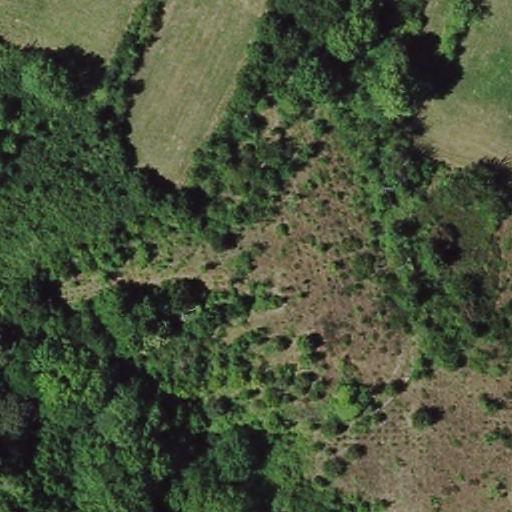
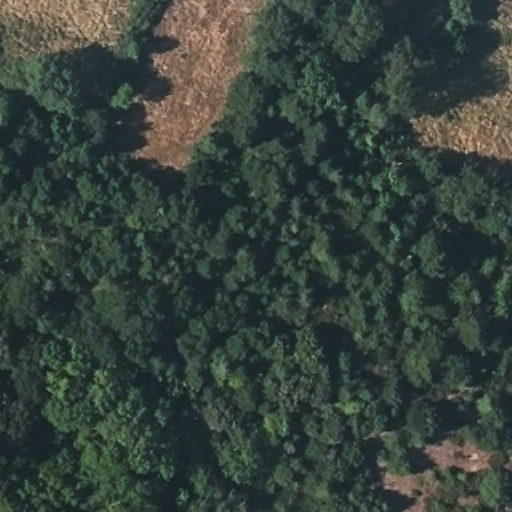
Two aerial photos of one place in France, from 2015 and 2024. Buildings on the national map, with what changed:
unchanged [(205,300),(187,313),(175,291),(192,278),(205,300)]

